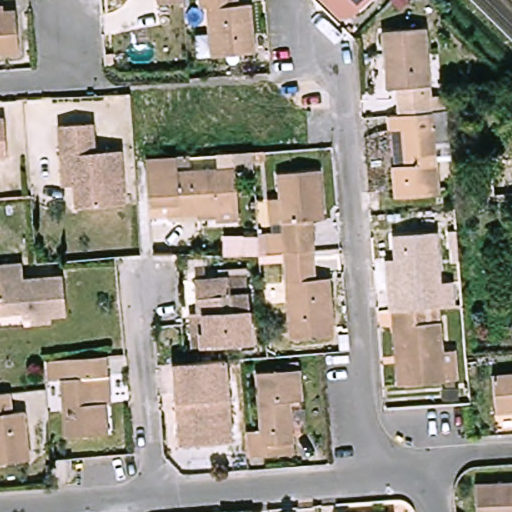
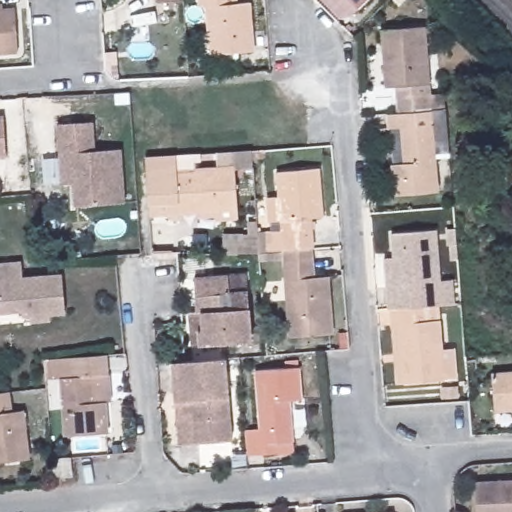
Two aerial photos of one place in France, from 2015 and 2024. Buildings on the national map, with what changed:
unchanged [(253,2),(256,49),(215,52),(211,6),(203,6),(203,0),(237,0),(238,2),(253,2)]
unchanged [(359,0),(370,0),(365,6),(359,0)]
unchanged [(6,12),(20,11),(23,53),(0,55),(0,7),(6,7),(6,12)]
unchanged [(400,86),(390,86),(385,30),(426,25),(434,107),(403,109),(400,86)]
unchanged [(440,190),(397,191),(394,159),(391,125),(390,110),(403,109),(434,107),(440,190)]
unchanged [(0,159),(0,120),(7,120),(10,159),(0,159)]
unchanged [(63,157),(60,127),(95,125),(97,152),(123,152),(126,204),(80,209),(78,187),(65,187),(63,157)]
unchanged [(171,210),(171,205),(153,206),(150,162),(180,161),(181,175),(238,171),(240,212),(184,215),(173,216),(171,210)]
unchanged [(275,249),(273,219),(270,194),(282,192),(280,169),(321,166),(326,215),(311,216),(314,246),(286,247),(275,249)]
unchanged [(403,255),(401,231),(444,228),(448,276),(429,277),(430,303),(401,306),(397,306),(396,281),(394,256),(403,255)]
unchanged [(314,246),(316,275),(331,275),(336,332),(293,335),(286,247),(314,246)]
unchanged [(1,311),(0,292),(0,263),(25,262),(26,277),(65,275),(68,312),(54,313),(54,320),(33,321),(33,315),(25,315),(25,310),(1,311)]
unchanged [(234,289),(253,288),(256,337),(210,341),(206,293),(201,294),(200,275),(232,273),(234,289)]
unchanged [(402,321),(401,306),(430,303),(431,320),(441,319),(445,378),(413,380),(407,381),(402,321)]
unchanged [(173,361),(180,360),(186,359),(226,356),(233,439),(196,442),(181,443),(173,361)]
unchanged [(113,405),(106,406),(110,436),(69,439),(63,382),(48,382),(46,363),(108,359),(110,377),(113,405)]
unchanged [(303,397),(290,398),(293,440),(279,441),(281,453),(251,456),(248,428),(263,427),(258,369),(301,366),(303,397)]
unchanged [(496,402),(493,370),(512,368),(512,407),(496,408),(496,402)]
unchanged [(31,416),(36,462),(0,465),(0,395),(17,394),(18,416),(31,416)]
unchanged [(74,475),(56,476),(55,458),(73,457),(74,475)]
unchanged [(479,485),(512,482),(512,512),(481,512),(479,485)]

